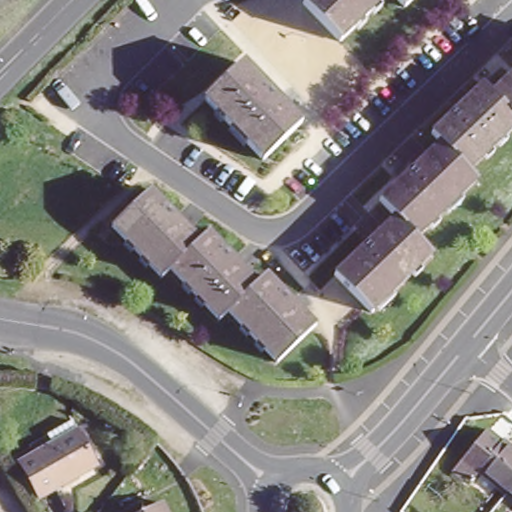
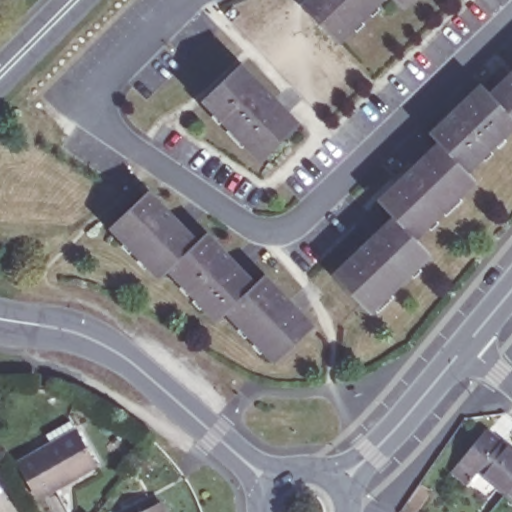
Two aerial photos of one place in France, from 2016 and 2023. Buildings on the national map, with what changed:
unchanged [(386,0),(342,41),(307,5),(312,0),(386,0)]
unchanged [(401,0),(415,0),(408,7),(401,0)]
unchanged [(245,65),(302,126),(264,161),(207,101),(245,65)]
unchanged [(383,204),(442,147),(435,139),(485,90),(493,98),(512,79),(512,135),(470,176),(480,186),(421,244),(435,259),(373,317),(340,280),(400,222),(383,204)]
unchanged [(155,195),(202,245),(212,237),(258,287),(267,279),(315,330),(277,365),(230,313),(220,322),(173,273),(164,280),(117,230),(155,195)]
unchanged [(512,446),(512,480),(504,490),(477,468),(480,465),(469,456),(490,431),(502,440),(503,439),(512,446)]
unchanged [(67,432),(85,467),(30,497),(12,462),(67,432)]
unchanged [(512,497),(504,490),(512,480),(512,497)]
unchanged [(157,501),(163,512),(138,512),(157,501)]

